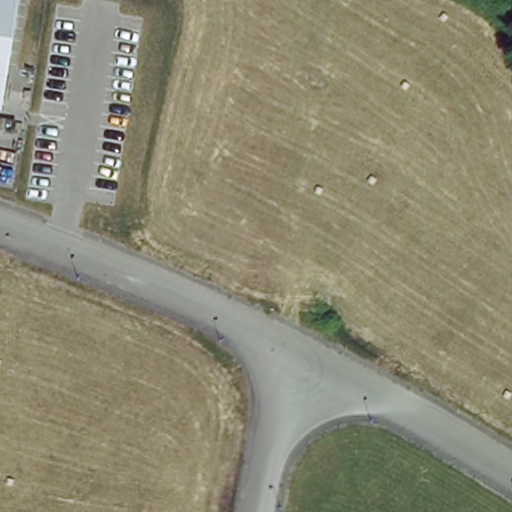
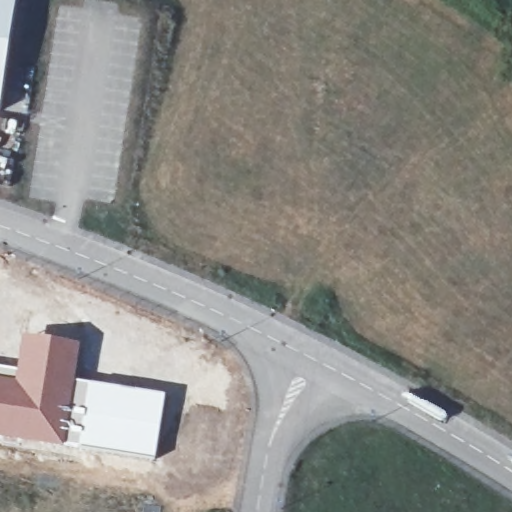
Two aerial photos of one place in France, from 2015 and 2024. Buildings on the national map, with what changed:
unchanged [(0,110),(0,0),(19,0),(2,111),(0,110)]
new [(17,368),(21,334),(80,343),(75,380),(65,447),(26,443),(0,438),(0,365),(17,368)]
new [(75,380),(166,393),(155,460),(65,447),(75,380)]

